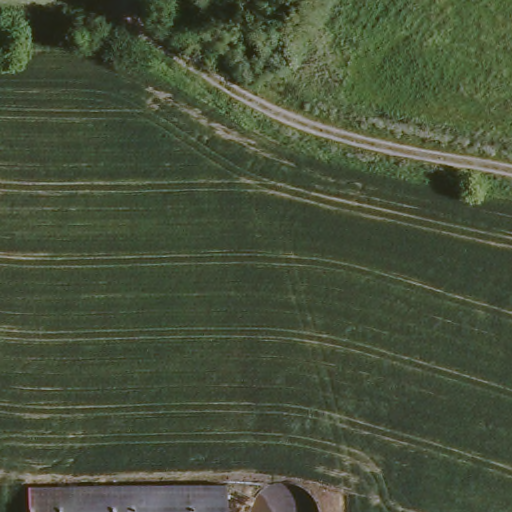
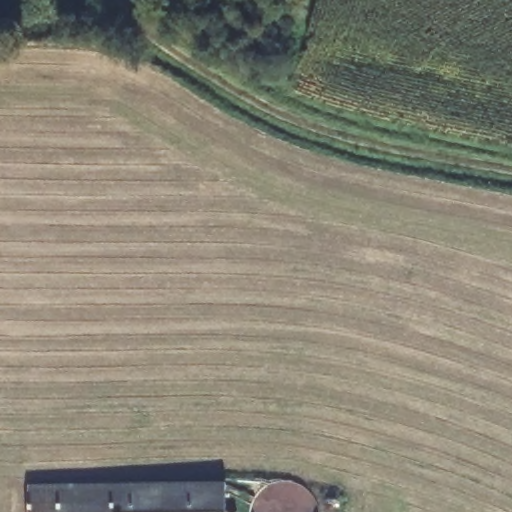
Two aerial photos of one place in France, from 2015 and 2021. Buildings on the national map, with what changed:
unchanged [(221,483),(222,512),(26,512),(25,486),(221,483)]

